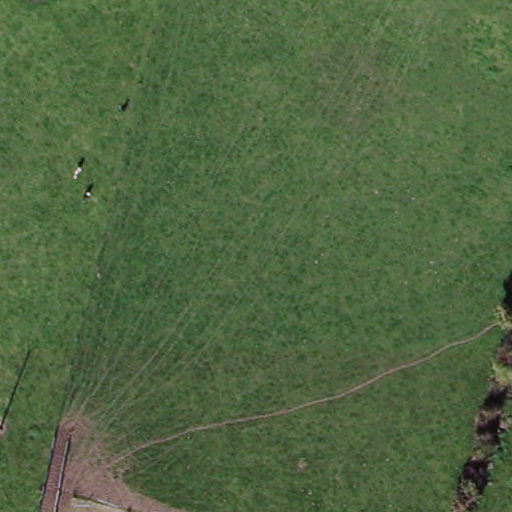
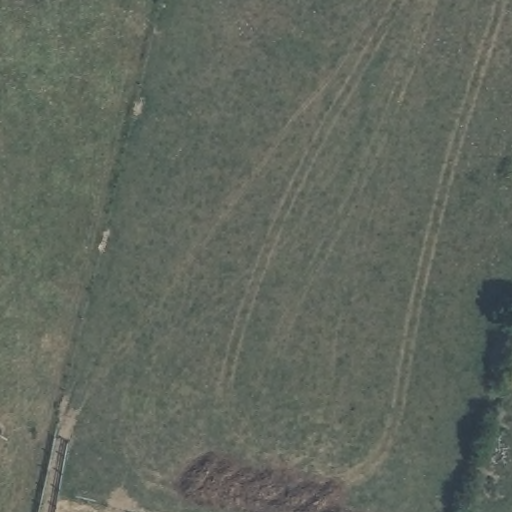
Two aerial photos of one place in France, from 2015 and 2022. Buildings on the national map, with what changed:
[]

